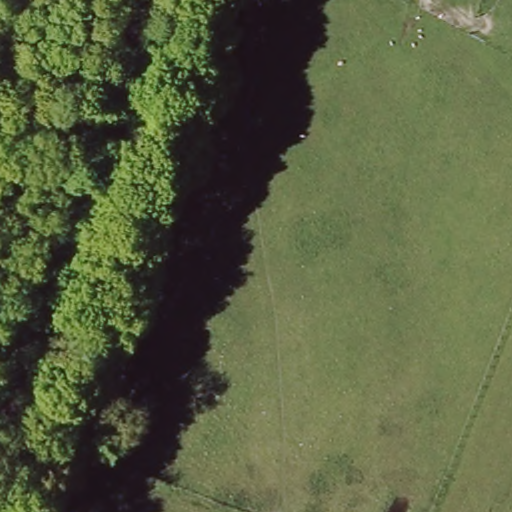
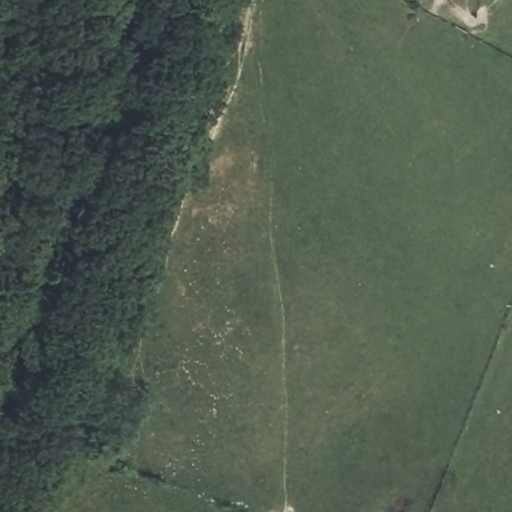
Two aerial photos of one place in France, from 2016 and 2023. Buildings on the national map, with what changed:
[]

